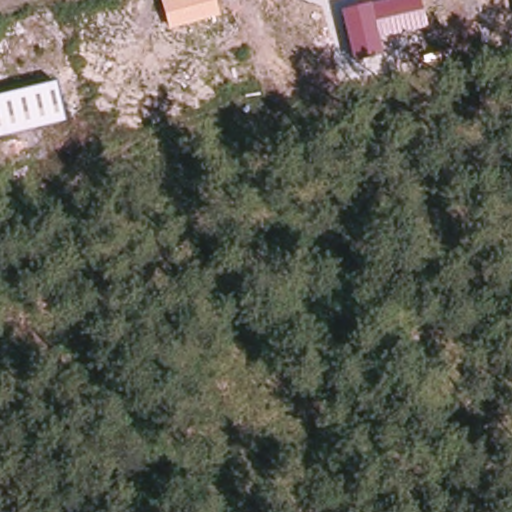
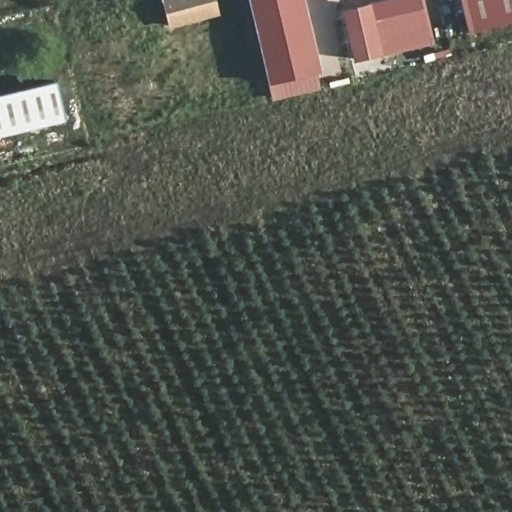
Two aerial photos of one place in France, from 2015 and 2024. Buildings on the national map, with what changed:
unchanged [(169,29),(162,0),(215,0),(219,15),(169,29)]
new [(261,84),(240,0),(295,0),(312,71),(261,84)]
unchanged [(354,60),(344,12),(398,0),(418,0),(427,44),(354,60)]
new [(461,0),(512,0),(512,21),(469,32),(461,0)]
unchanged [(64,121),(0,137),(0,95),(55,81),(64,121)]

